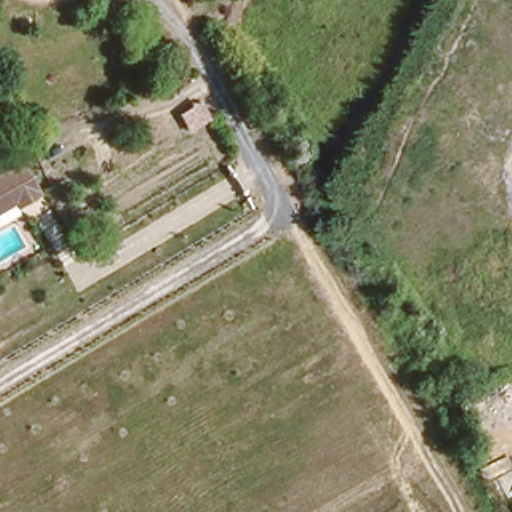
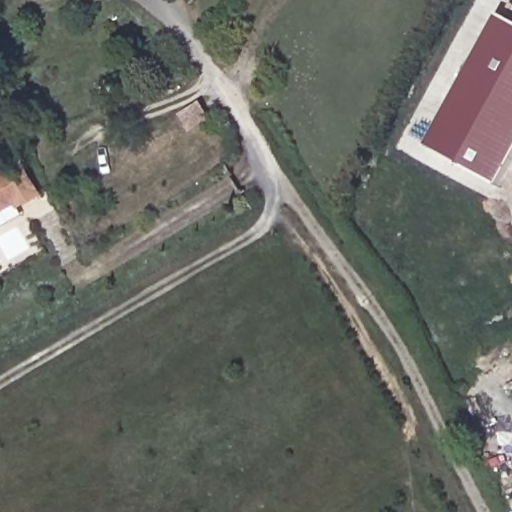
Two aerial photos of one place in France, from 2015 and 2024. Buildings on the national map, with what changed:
new [(429,147),(500,16),(512,22),(512,162),(499,186),(429,147)]
unchanged [(15,161),(32,195),(0,211),(0,168),(15,161)]

